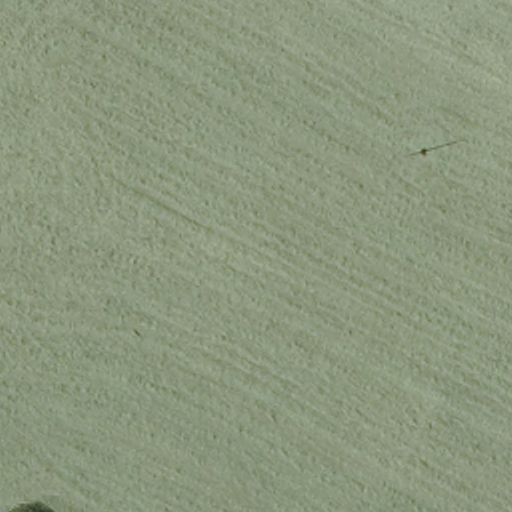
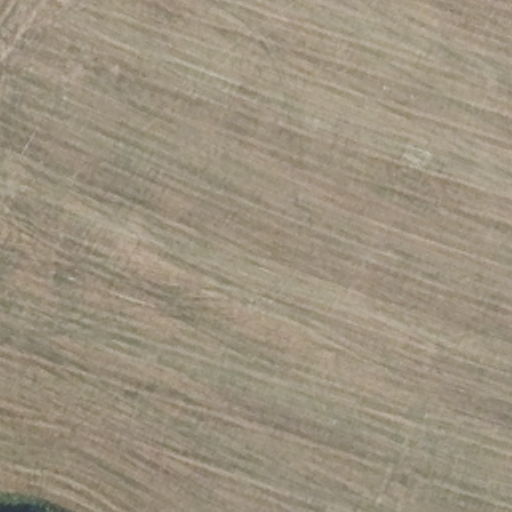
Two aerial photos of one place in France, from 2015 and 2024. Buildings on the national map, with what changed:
[]

